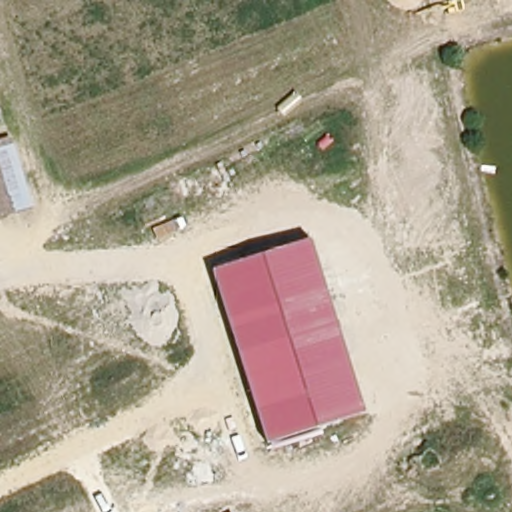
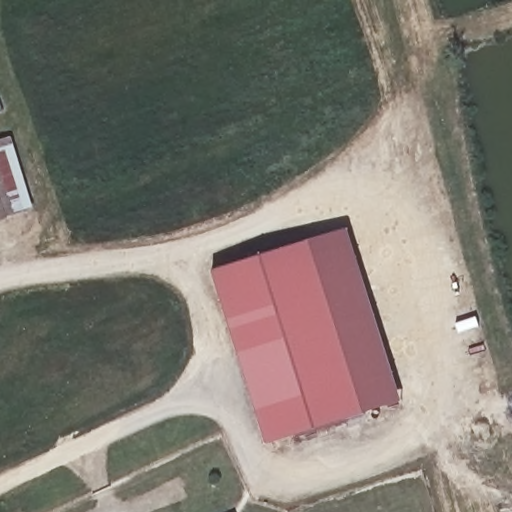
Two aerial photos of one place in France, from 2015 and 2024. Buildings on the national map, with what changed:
unchanged [(0,221),(0,157),(16,216),(0,221)]
new [(311,238),(348,226),(402,400),(364,411),(311,238)]
unchanged [(364,411),(266,445),(213,270),(311,238),(364,411)]

